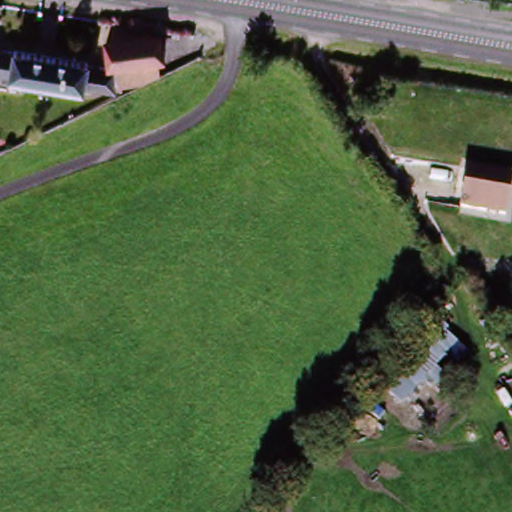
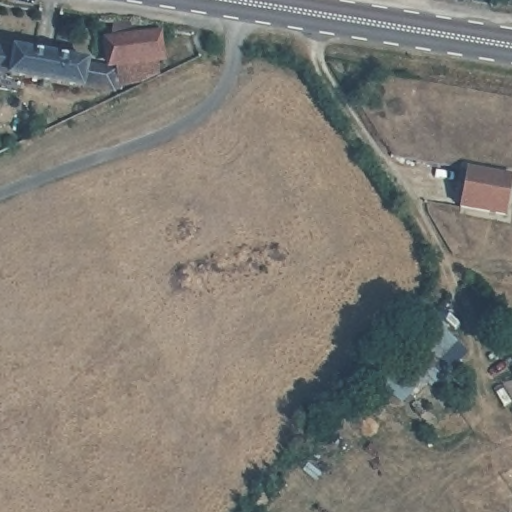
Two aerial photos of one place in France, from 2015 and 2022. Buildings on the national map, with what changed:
unchanged [(79,90),(20,79),(17,91),(10,90),(12,77),(0,74),(0,53),(12,55),(13,50),(86,62),(86,67),(112,71),(115,63),(108,62),(109,41),(117,40),(117,21),(151,27),(157,77),(145,84),(124,81),(122,95),(80,86),(79,90)]
unchanged [(459,209),(464,167),(512,174),(512,202),(510,220),(459,209)]
unchanged [(405,404),(377,379),(432,322),(450,335),(434,352),(445,362),(405,404)]

